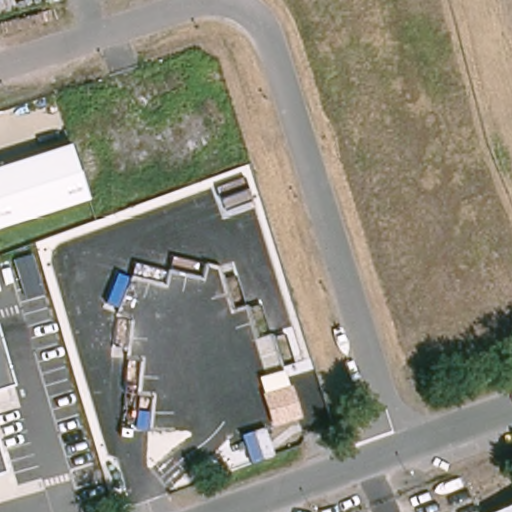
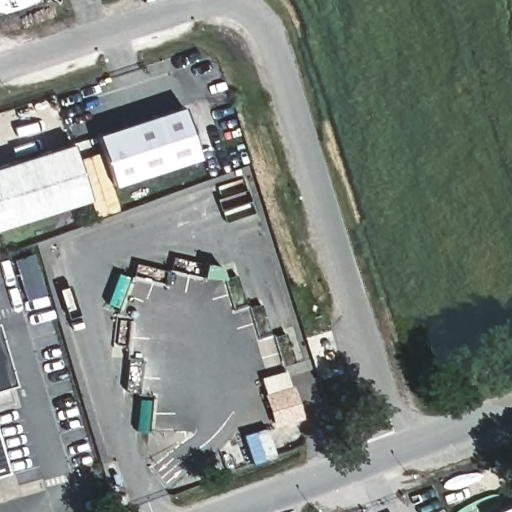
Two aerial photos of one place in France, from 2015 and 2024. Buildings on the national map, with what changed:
new [(114,186),(96,134),(181,106),(199,157),(114,186)]
unchanged [(0,226),(0,164),(70,141),(89,196),(0,226)]
unchanged [(0,386),(0,338),(13,382),(0,386)]
unchanged [(267,406),(263,394),(286,387),(295,414),(276,420),(271,421),(267,406)]
unchanged [(0,472),(0,450),(6,470),(0,472)]
unchanged [(491,512),(512,502),(512,512),(491,512)]

